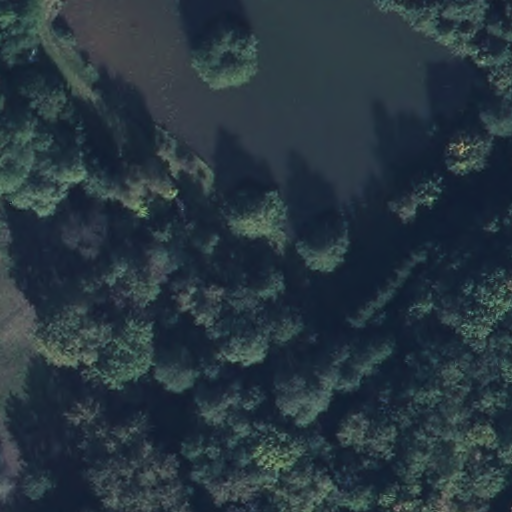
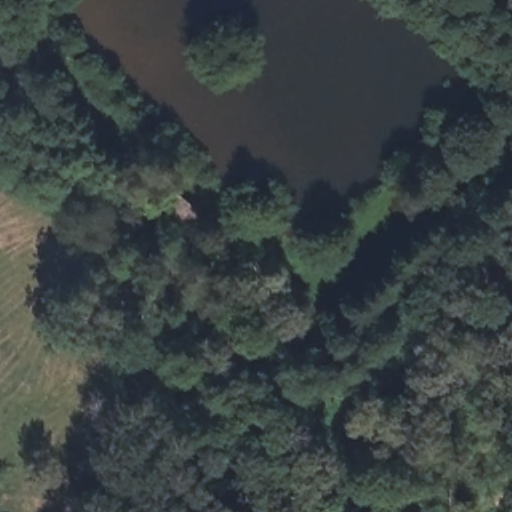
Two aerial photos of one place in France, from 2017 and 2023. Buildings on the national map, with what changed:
unchanged [(195,214),(176,227),(155,199),(170,186),(195,214)]

